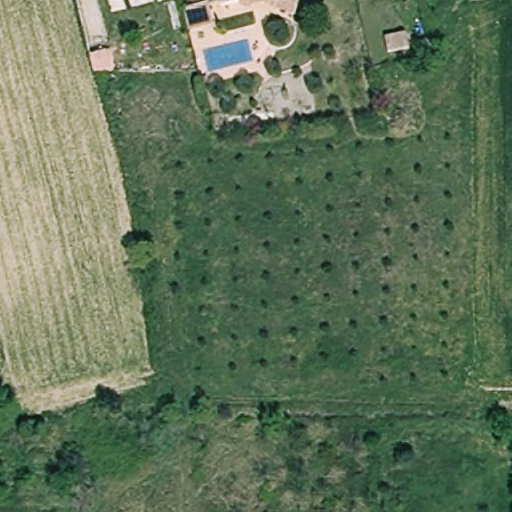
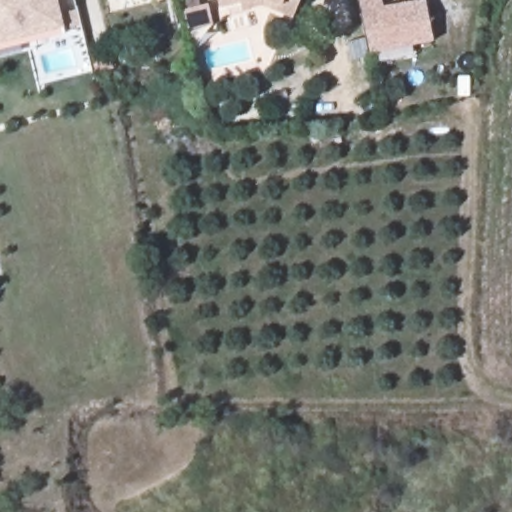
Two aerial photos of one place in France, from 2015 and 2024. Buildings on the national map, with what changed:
new [(65,27),(0,43),(0,0),(58,0),(65,27)]
unchanged [(220,9),(217,0),(256,0),(220,9)]
unchanged [(280,5),(266,0),(282,0),(280,5)]
new [(370,54),(359,0),(382,0),(384,6),(415,0),(425,0),(434,41),(370,54)]
demolished [(408,29),(413,42),(398,46),(394,34),(408,29)]

